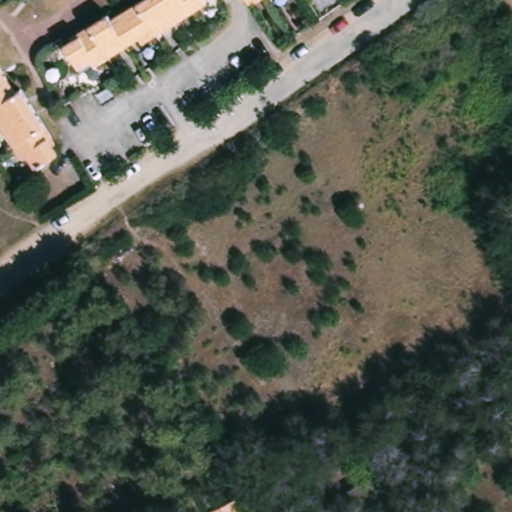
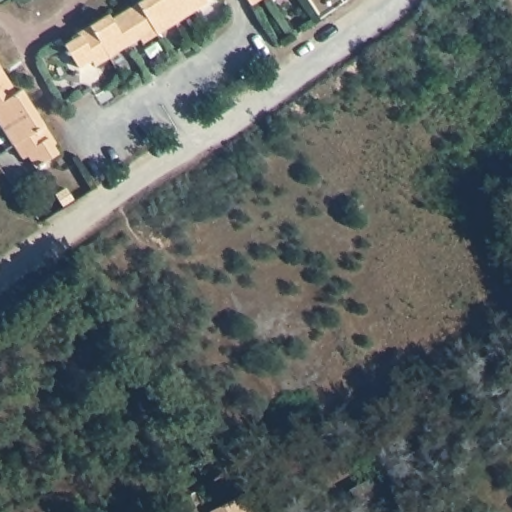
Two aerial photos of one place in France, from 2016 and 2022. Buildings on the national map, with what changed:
unchanged [(143,45),(140,41),(96,67),(93,63),(81,70),(67,47),(75,42),(73,39),(110,17),(112,21),(147,0),(207,0),(209,5),(143,45)]
unchanged [(253,8),(248,0),(265,0),(253,8)]
unchanged [(55,148),(59,156),(38,170),(31,158),(26,161),(0,119),(0,63),(16,89),(13,92),(17,98),(24,94),(58,146),(55,148)]
unchanged [(257,512),(227,512),(250,500),(257,512)]

